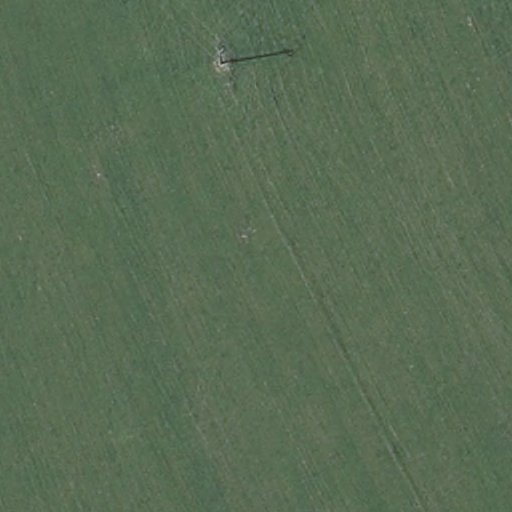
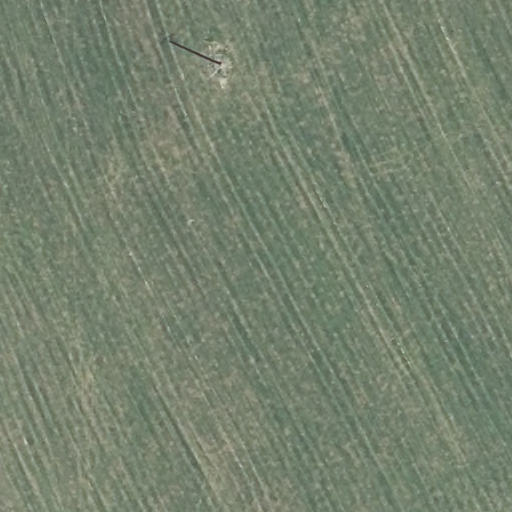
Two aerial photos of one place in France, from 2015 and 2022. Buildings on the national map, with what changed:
[]

